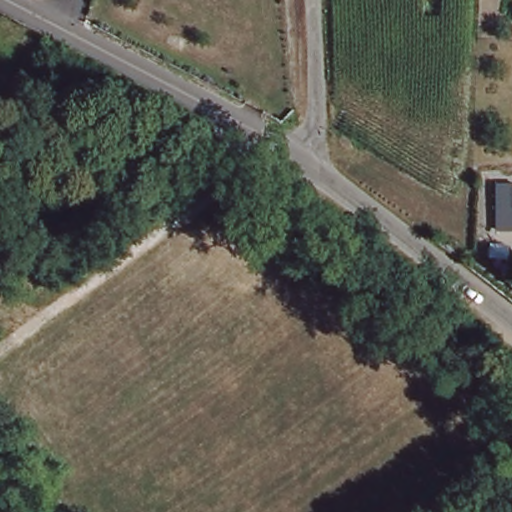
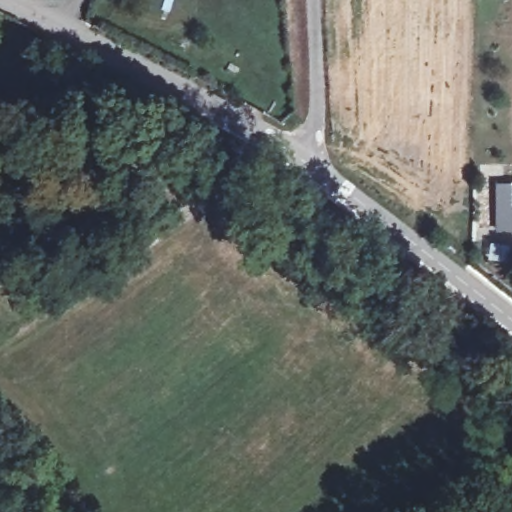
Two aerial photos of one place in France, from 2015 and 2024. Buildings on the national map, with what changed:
unchanged [(494,185),(508,185),(512,185),(512,227),(494,226),(494,185)]

